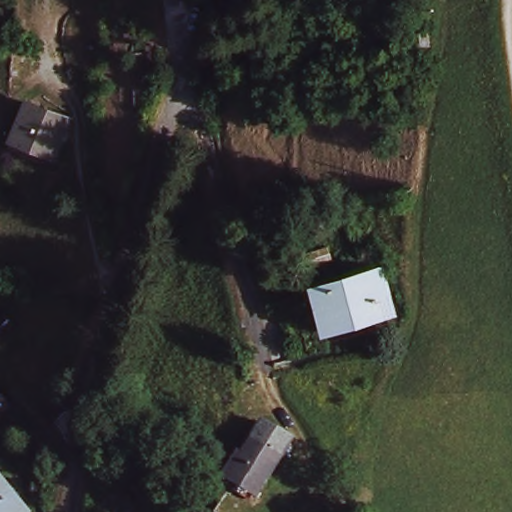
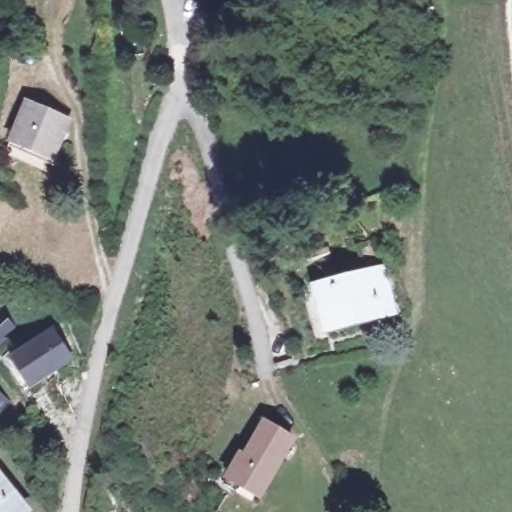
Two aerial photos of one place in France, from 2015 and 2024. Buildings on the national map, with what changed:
unchanged [(33,104),(75,122),(58,156),(17,137),(33,104)]
unchanged [(317,287),(367,275),(380,272),(389,308),(375,311),(327,325),(317,287)]
unchanged [(0,340),(0,313),(14,327),(0,340)]
new [(15,356),(52,331),(69,357),(31,382),(15,356)]
unchanged [(0,410),(0,397),(6,403),(0,410)]
unchanged [(228,465),(233,468),(262,420),(290,437),(256,490),(225,470),(228,465)]
unchanged [(0,479),(26,512),(0,512),(0,479)]

